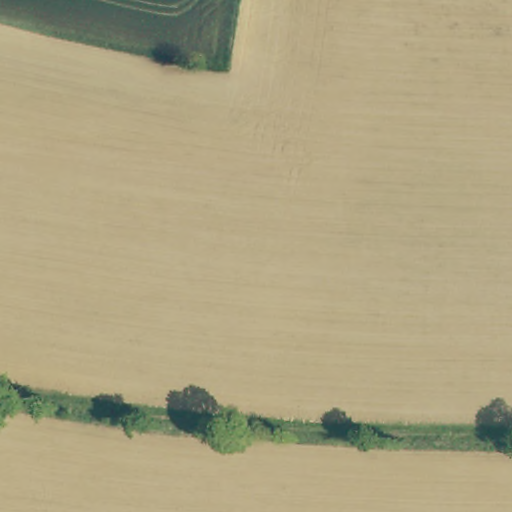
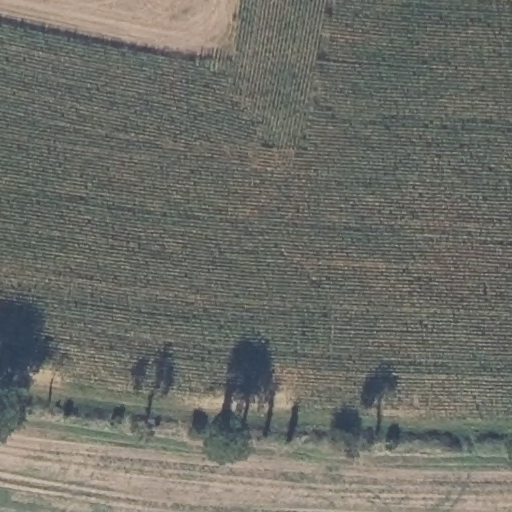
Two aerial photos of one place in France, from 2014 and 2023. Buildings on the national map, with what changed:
[]

